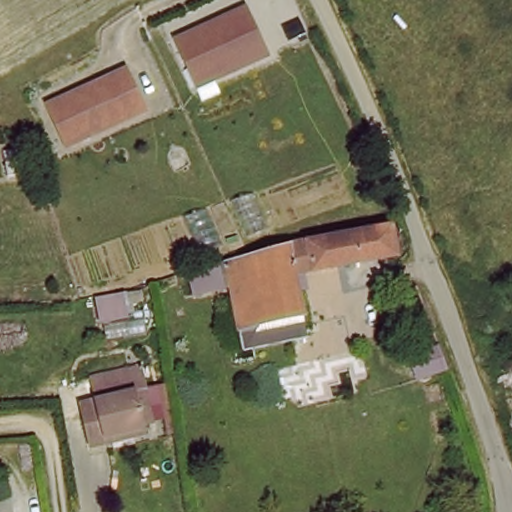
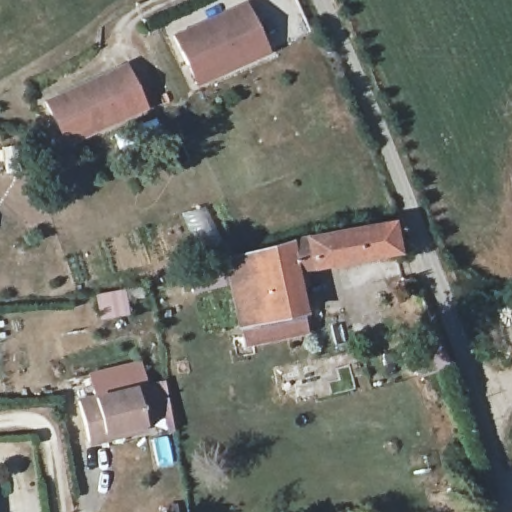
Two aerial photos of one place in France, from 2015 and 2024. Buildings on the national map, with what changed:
unchanged [(192,87),(169,37),(240,5),(264,57),(192,87)]
unchanged [(65,147),(43,101),(121,64),(144,111),(65,147)]
unchanged [(390,222),(396,252),(294,271),(303,312),(307,334),(243,347),(241,337),(239,325),(230,283),(192,292),(187,270),(226,259),(289,242),(390,222)]
unchanged [(446,366),(417,377),(409,354),(438,343),(446,366)]
unchanged [(151,390),(140,393),(148,429),(109,438),(110,443),(93,447),(84,406),(100,403),(94,380),(146,367),(151,390)]

